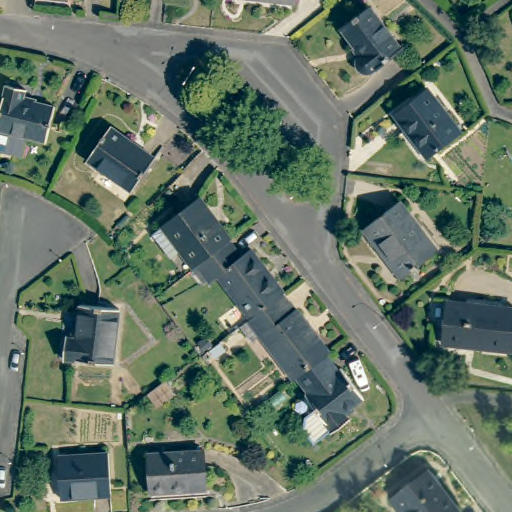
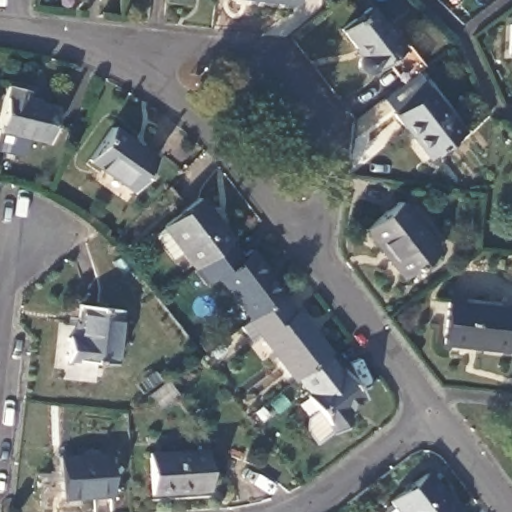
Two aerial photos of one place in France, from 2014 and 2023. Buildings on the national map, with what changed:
unchanged [(295,4),(263,0),(295,0),(295,4)]
unchanged [(371,9),(402,51),(377,70),(374,74),(370,76),(365,76),(360,74),(357,70),(356,66),(357,61),(360,57),(341,31),(371,9)]
unchanged [(5,77),(25,81),(23,91),(55,99),(47,134),(26,129),(21,150),(0,144),(0,100),(5,77)]
unchanged [(428,91),(461,133),(428,160),(394,116),(428,91)]
unchanged [(154,160),(131,193),(87,161),(110,129),(154,160)]
unchanged [(400,203),(437,251),(403,277),(365,230),(400,203)]
unchanged [(219,247),(187,272),(184,275),(152,233),(189,205),(220,246),(219,247)]
unchanged [(231,263),(240,256),(273,300),(271,301),(241,325),(207,281),(200,287),(187,272),(219,247),(231,263)]
unchanged [(284,317),(287,315),(320,358),(316,361),(288,383),(283,387),(250,342),(247,344),(235,329),(241,325),(271,301),(284,317)]
unchanged [(447,303),(512,310),(512,352),(443,345),(447,303)]
unchanged [(112,368),(63,363),(65,341),(76,342),(80,309),(119,314),(112,368)]
unchanged [(328,376),(331,374),(353,404),(334,417),(339,425),(322,436),(321,434),(304,447),(293,433),(295,422),(305,414),(295,401),(299,397),(288,383),(316,361),(328,376)]
unchanged [(166,382),(177,396),(160,410),(149,395),(166,382)]
unchanged [(209,451),(212,490),(157,494),(155,454),(209,451)]
unchanged [(109,455),(110,497),(62,501),(61,458),(109,455)]
unchanged [(430,475),(458,512),(396,512),(390,505),(430,475)]

